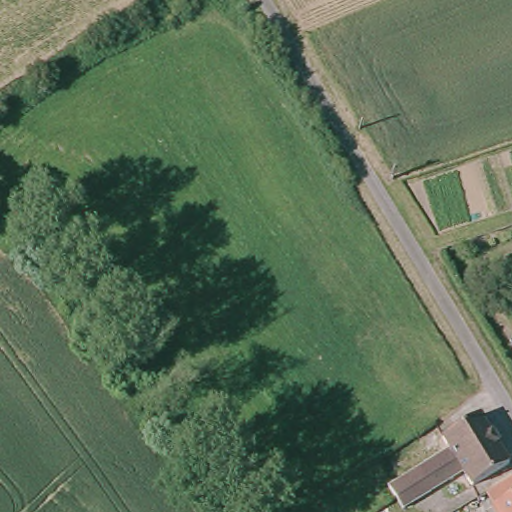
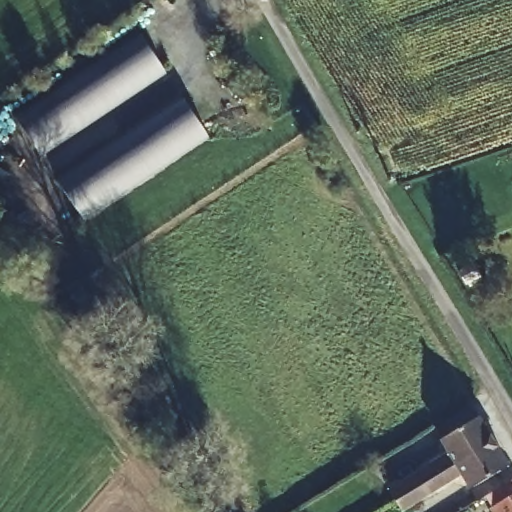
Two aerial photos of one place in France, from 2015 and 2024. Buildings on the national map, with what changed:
new [(142,29),(167,74),(42,156),(14,116),(142,29)]
new [(212,135),(83,224),(55,183),(185,96),(212,135)]
unchanged [(443,439),(479,416),(493,441),(457,462),(443,439)]
unchanged [(493,441),(507,463),(470,485),(457,462),(493,441)]
unchanged [(450,476),(427,489),(433,499),(421,505),(411,488),(399,468),(410,461),(422,481),(446,468),(450,476)]
unchanged [(492,508),(512,495),(512,512),(494,512),(492,508)]

